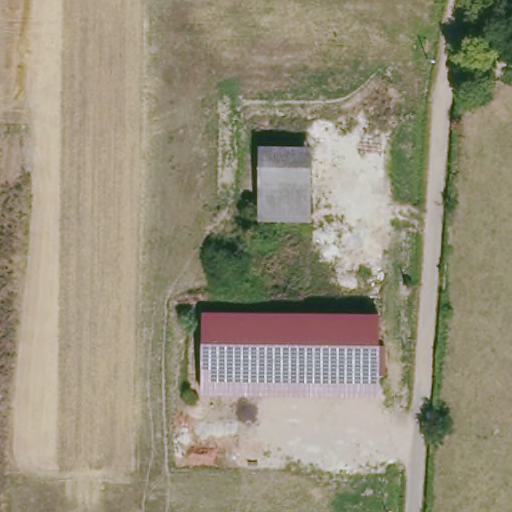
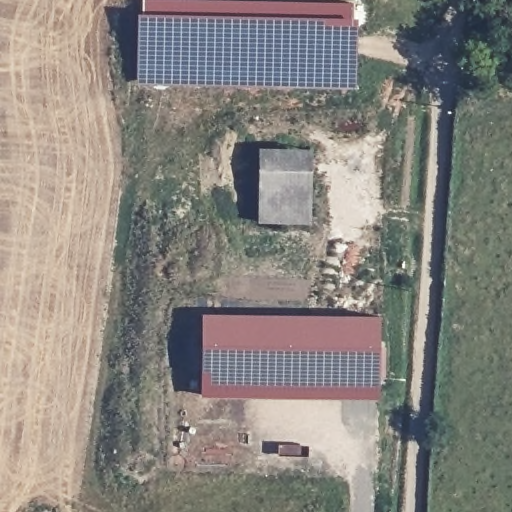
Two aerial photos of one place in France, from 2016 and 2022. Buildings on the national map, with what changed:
new [(173,0),(357,3),(355,86),(141,83),(142,0),(173,0)]
unchanged [(258,221),(260,148),(310,149),(309,222),(258,221)]
unchanged [(204,395),(206,313),(383,315),(382,398),(204,395)]

